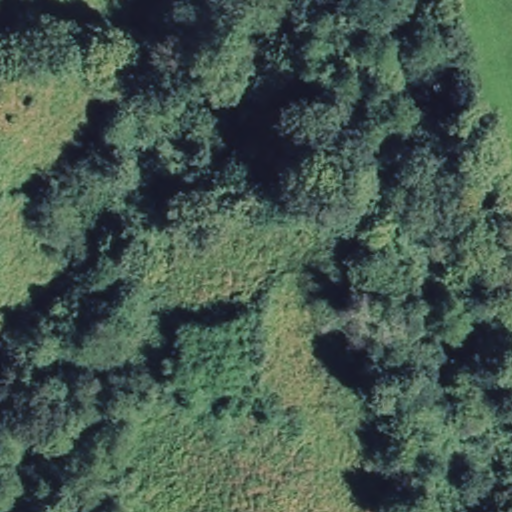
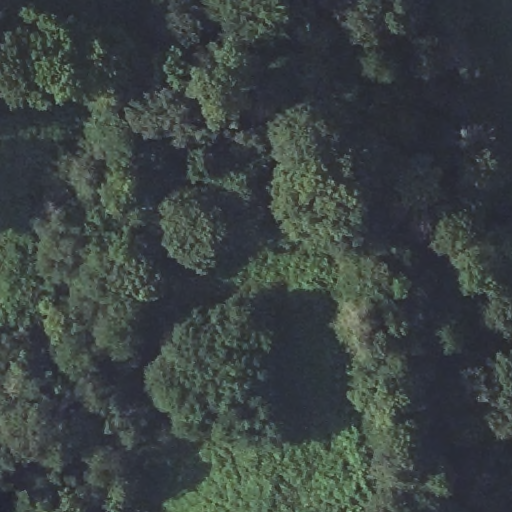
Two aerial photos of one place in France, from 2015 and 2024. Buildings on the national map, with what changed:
[]

